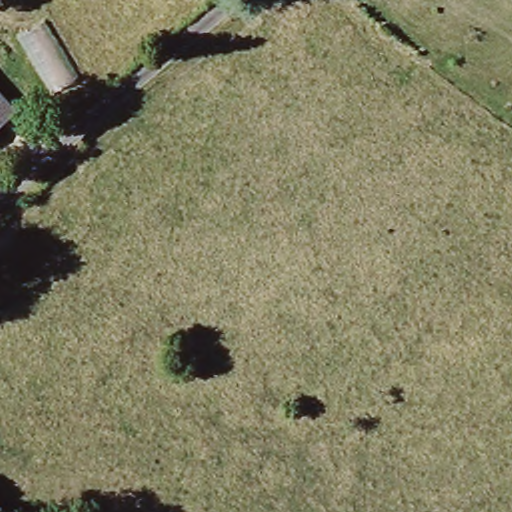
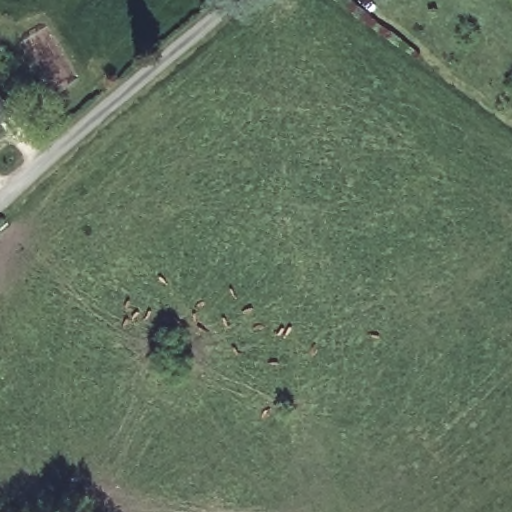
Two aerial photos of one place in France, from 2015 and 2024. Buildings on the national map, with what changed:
unchanged [(12,108),(0,118),(0,94),(12,108)]

